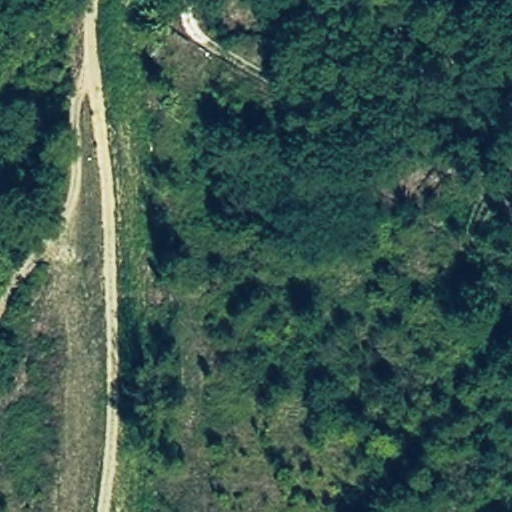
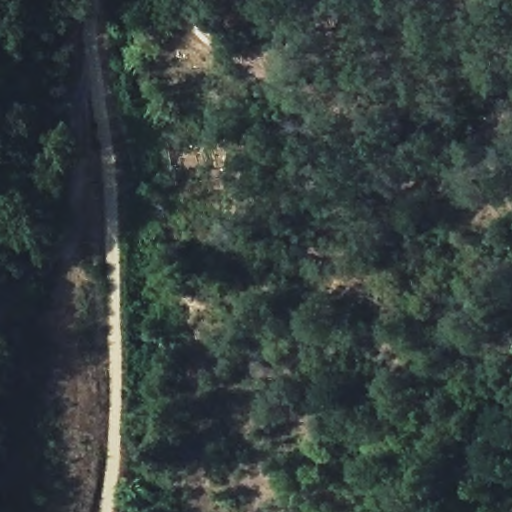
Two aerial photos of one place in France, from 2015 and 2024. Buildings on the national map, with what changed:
[]

